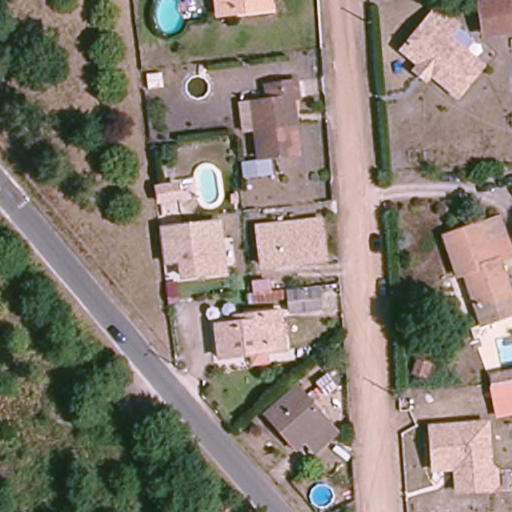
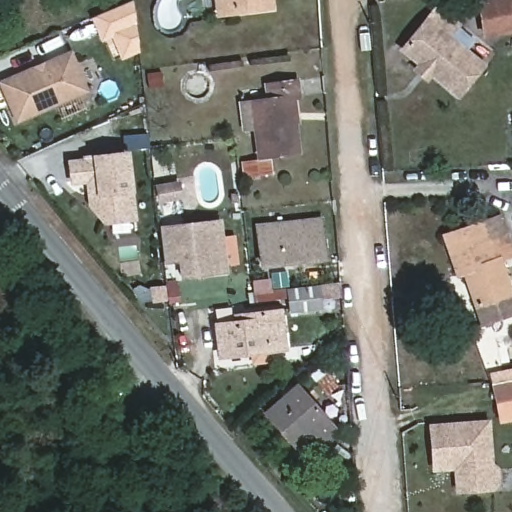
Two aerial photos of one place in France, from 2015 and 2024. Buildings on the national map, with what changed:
new [(121,60),(111,37),(101,41),(91,19),(133,0),(138,52),(121,60)]
unchanged [(214,0),(269,0),(270,7),(227,11),(216,13),(214,0)]
unchanged [(482,1),(491,0),(512,0),(512,28),(487,32),(484,15),(482,1)]
unchanged [(413,69),(418,63),(401,49),(436,6),(457,23),(447,35),(481,63),(457,94),(430,72),(425,78),(413,69)]
new [(0,90),(0,80),(71,50),(89,92),(15,123),(0,90)]
unchanged [(150,71),(161,70),(163,82),(151,83),(150,71)]
unchanged [(260,153),(255,101),(270,99),(269,82),(300,79),(302,97),(299,98),(301,119),(296,119),(299,149),(260,153)]
new [(90,154),(128,151),(133,193),(136,221),(103,224),(86,207),(84,184),(68,186),(66,159),(81,158),(81,155),(90,154)]
unchanged [(245,160),(273,157),(275,172),(247,175),(245,160)]
unchanged [(182,183),(162,185),(161,171),(180,169),(182,183)]
unchanged [(296,275),(295,264),(264,268),(259,229),(291,225),(321,221),(323,239),(326,261),(310,263),(311,273),(296,275)]
unchanged [(226,272),(185,276),(183,259),(165,261),(163,246),(163,244),(161,229),(221,222),(226,272)]
unchanged [(460,284),(446,245),(483,232),(501,226),(508,245),(512,256),(512,266),(502,269),(512,297),(512,304),(479,315),(467,281),(460,284)]
unchanged [(292,314),(291,302),(262,305),(260,295),(290,292),(320,289),(322,311),(292,314)]
unchanged [(214,327),(234,325),(233,319),(277,315),(281,352),(218,360),(214,327)]
unchanged [(496,418),(489,390),(491,383),(488,374),(512,369),(512,415),(496,418)]
unchanged [(319,380),(331,370),(339,380),(328,390),(319,380)]
unchanged [(283,427),(270,411),(299,386),(337,431),(316,449),(307,438),(298,445),(283,427)]
unchanged [(492,461),(499,468),(500,485),(493,490),(453,493),(452,471),(432,473),(428,424),(489,420),(492,461)]

